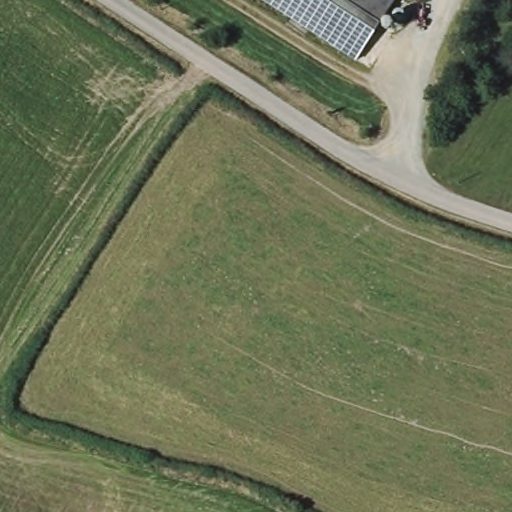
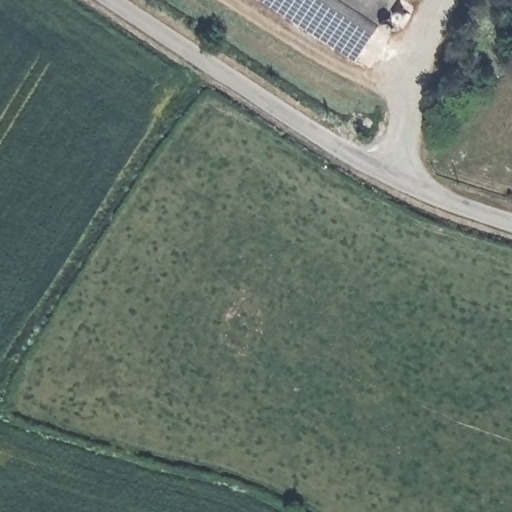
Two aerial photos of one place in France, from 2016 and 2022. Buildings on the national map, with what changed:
unchanged [(393,9),(353,67),(257,0),(381,0),(393,9)]

